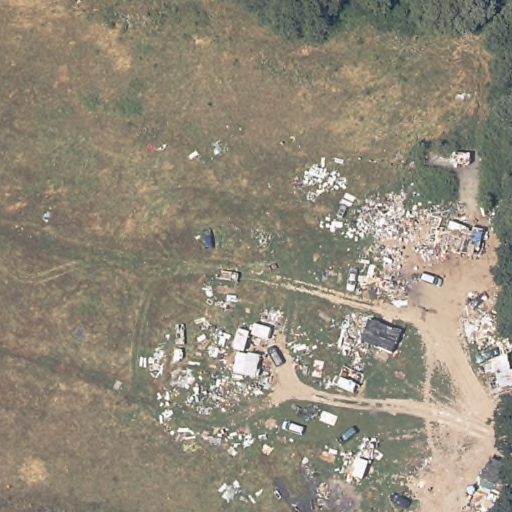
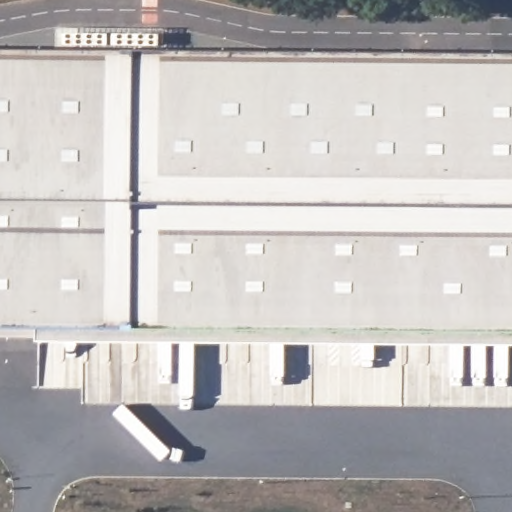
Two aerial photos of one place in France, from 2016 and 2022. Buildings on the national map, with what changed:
new [(0,329),(0,49),(512,55),(512,332),(0,329)]
demolished [(459,211),(456,172),(426,171),(425,148),(481,147),(481,212),(459,211)]

